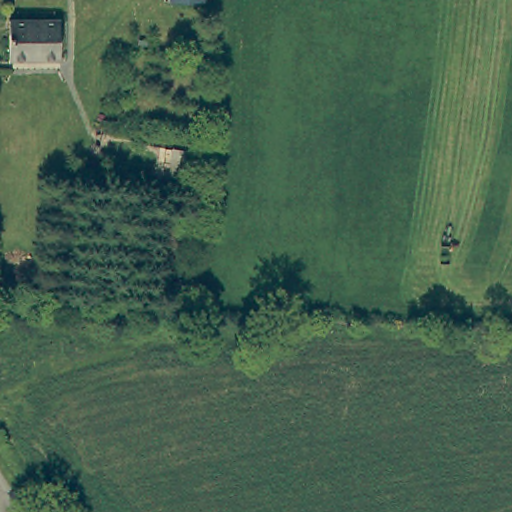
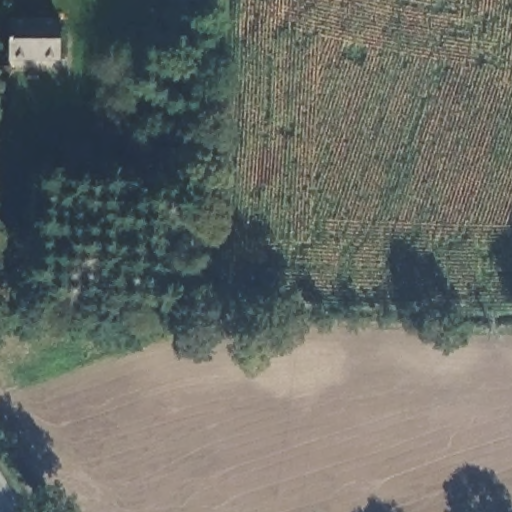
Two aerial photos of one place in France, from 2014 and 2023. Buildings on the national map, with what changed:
unchanged [(9,20),(57,21),(56,57),(9,57),(9,20)]

